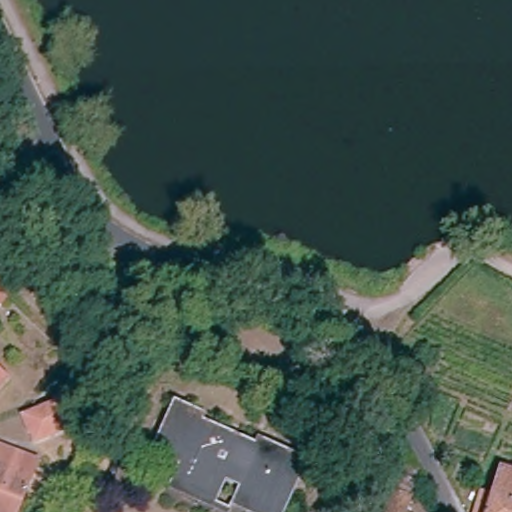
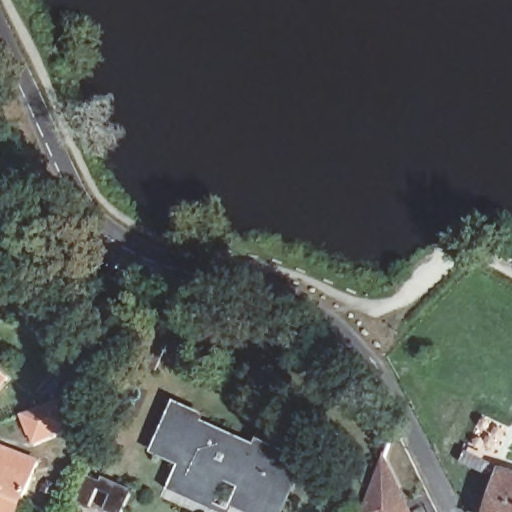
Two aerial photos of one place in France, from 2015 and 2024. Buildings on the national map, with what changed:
unchanged [(10,299),(0,311),(0,289),(10,299)]
unchanged [(7,381),(0,389),(0,373),(7,381)]
unchanged [(60,400),(73,426),(40,443),(35,433),(32,435),(24,417),(60,400)]
unchanged [(205,420),(202,427),(263,452),(265,446),(293,458),(269,512),(250,512),(237,507),(244,489),(227,482),(218,504),(182,489),(194,460),(182,455),(166,447),(182,410),(205,420)]
unchanged [(0,512),(0,447),(4,450),(39,465),(19,512),(0,512)]
new [(386,458),(414,512),(359,512),(383,456),(386,458)]
unchanged [(510,474),(512,475),(512,512),(480,512),(487,495),(500,498),(510,474)]

